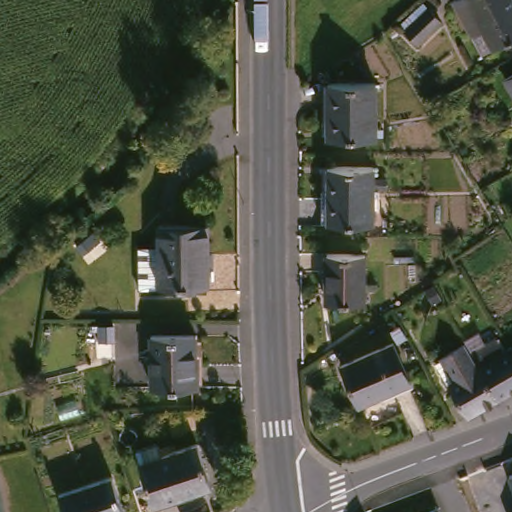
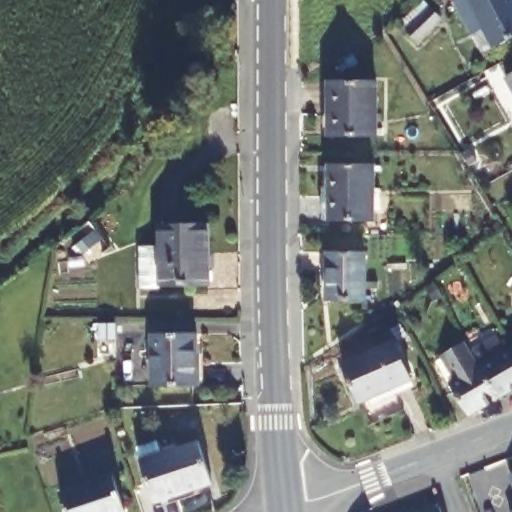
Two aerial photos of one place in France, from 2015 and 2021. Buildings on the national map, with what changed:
unchanged [(466,37),(449,5),(458,0),(506,0),(512,10),(512,35),(487,49),(476,55),(466,37)]
unchanged [(405,32),(429,11),(440,22),(417,46),(405,32)]
unchanged [(512,72),(512,97),(501,78),(512,72)]
unchanged [(375,140),(331,137),(334,85),(378,88),(375,140)]
unchanged [(329,162),(373,165),(370,220),(326,217),(329,162)]
unchanged [(138,288),(140,244),(161,244),(160,225),(209,227),(209,286),(161,285),(161,289),(138,288)]
unchanged [(326,254),(366,255),(363,300),(324,298),(326,254)]
unchanged [(195,338),(195,390),(152,391),(151,338),(195,338)]
unchanged [(469,417),(467,415),(452,387),(459,383),(443,355),(465,342),(473,357),(499,402),(469,417)]
unchanged [(499,402),(473,357),(499,343),(505,355),(511,352),(512,355),(512,395),(499,402)]
unchanged [(391,345),(406,378),(359,400),(344,367),(391,345)]
unchanged [(511,352),(512,351),(512,355),(511,352)]
unchanged [(151,499),(136,447),(158,441),(162,455),(195,446),(206,484),(151,499)]
unchanged [(509,477),(512,475),(512,485),(509,477)]
unchanged [(109,477),(119,512),(66,512),(60,491),(109,477)]
unchanged [(418,512),(434,507),(436,512),(418,512)]

